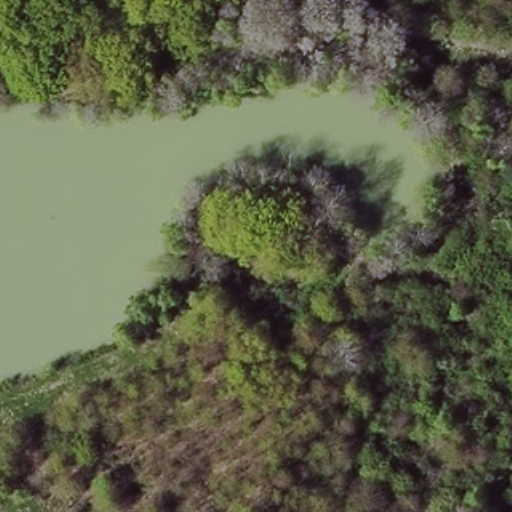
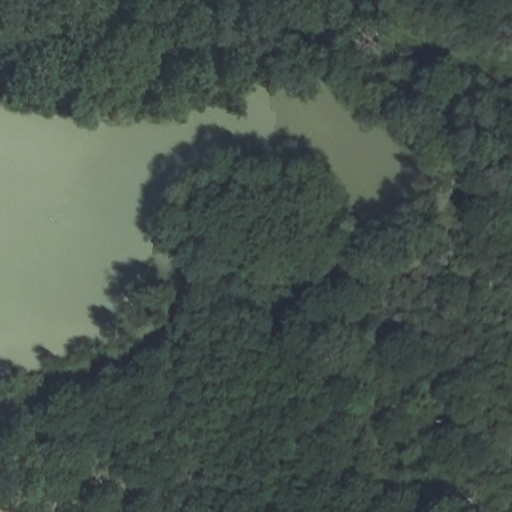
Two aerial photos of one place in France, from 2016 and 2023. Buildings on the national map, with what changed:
[]

